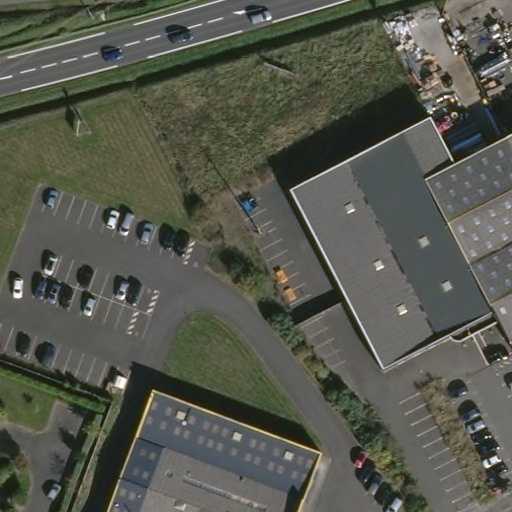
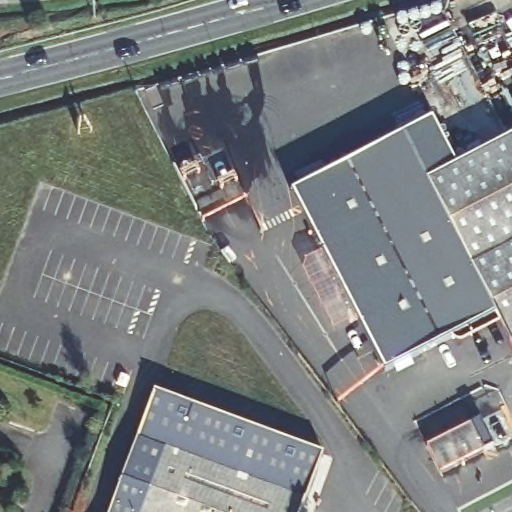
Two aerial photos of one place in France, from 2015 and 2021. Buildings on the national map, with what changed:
unchanged [(388,366),(294,184),(434,113),(458,161),(429,175),(498,309),(388,366)]
unchanged [(429,175),(458,161),(512,133),(512,336),(498,309),(429,175)]
unchanged [(158,382),(328,445),(320,466),(150,404),(158,382)]
unchanged [(312,491),(305,512),(232,512),(140,478),(128,512),(111,512),(150,404),(320,466),(312,491)]
unchanged [(0,416),(0,405),(3,406),(1,412),(0,416)]
new [(482,419),(496,446),(486,451),(443,473),(429,445),(473,424),(482,419)]
unchanged [(128,512),(140,478),(232,512),(128,512)]

